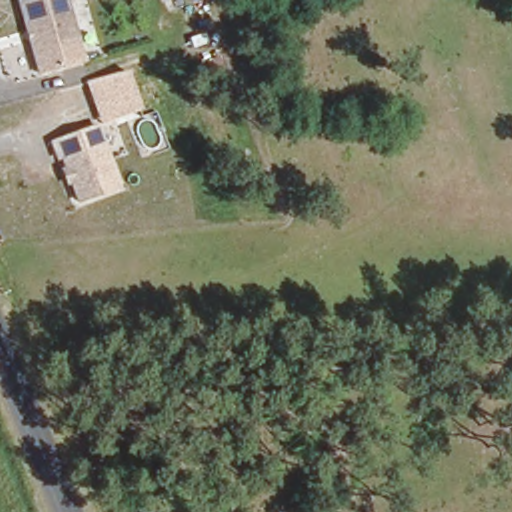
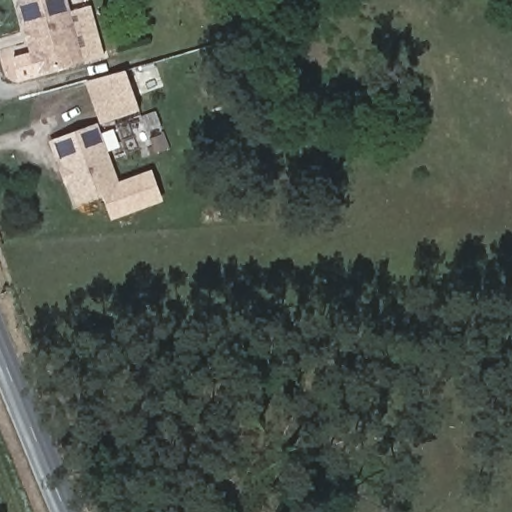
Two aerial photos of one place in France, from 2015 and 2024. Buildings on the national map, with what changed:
unchanged [(18,16),(16,5),(30,1),(34,0),(62,0),(78,65),(45,74),(33,77),(18,16)]
unchanged [(141,110),(101,125),(85,82),(126,71),(141,110)]
unchanged [(94,127),(118,187),(76,203),(70,189),(59,159),(55,160),(49,144),(60,140),(94,127)]
new [(118,187),(116,182),(151,170),(164,201),(112,220),(102,193),(118,187)]

